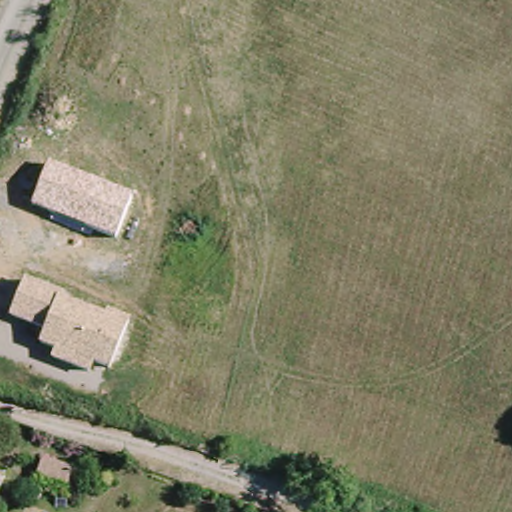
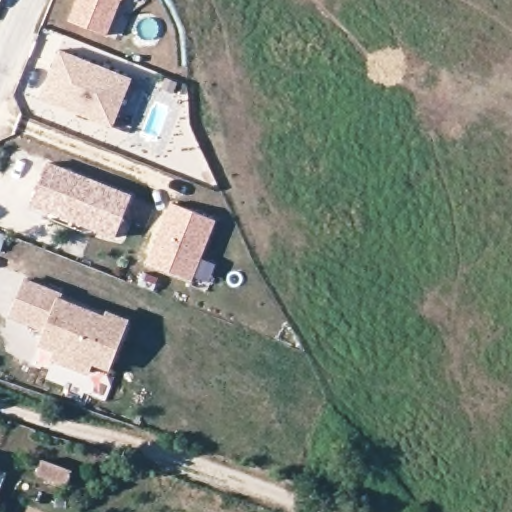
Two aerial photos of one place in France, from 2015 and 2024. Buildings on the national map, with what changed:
new [(106,36),(67,21),(76,0),(122,0),(120,1),(106,36)]
new [(131,78),(113,129),(39,99),(59,50),(131,78)]
unchanged [(31,206),(49,162),(132,195),(115,239),(31,206)]
new [(216,221),(191,283),(146,264),(170,204),(216,221)]
unchanged [(50,361),(55,351),(38,347),(45,331),(10,317),(25,279),(63,295),(61,299),(107,317),(108,312),(130,322),(110,372),(93,366),(90,375),(50,361)]
unchanged [(65,485),(33,473),(39,457),(71,469),(65,485)]

